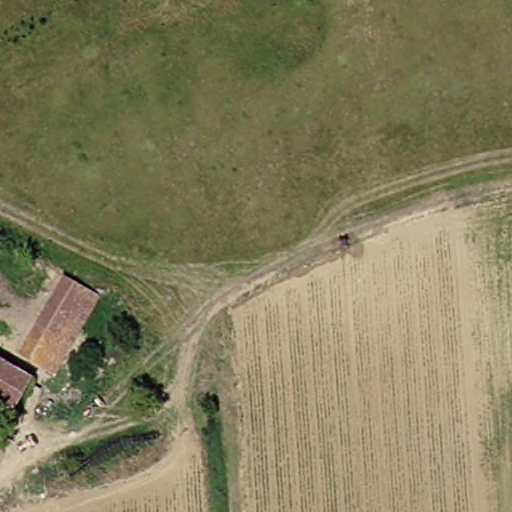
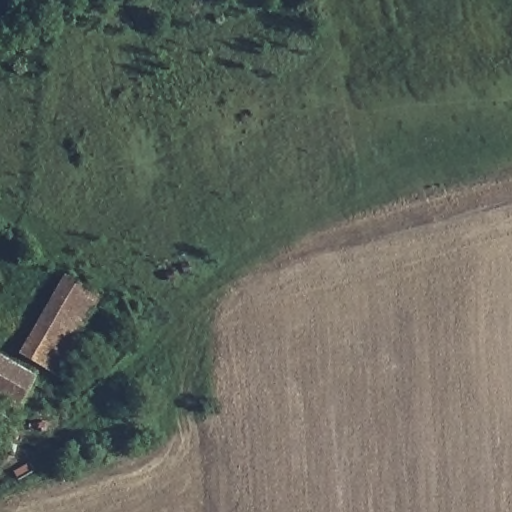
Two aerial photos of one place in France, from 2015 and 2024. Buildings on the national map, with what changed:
unchanged [(60,371),(35,357),(79,278),(105,289),(60,371)]
unchanged [(0,398),(0,349),(52,378),(30,415),(0,398)]

